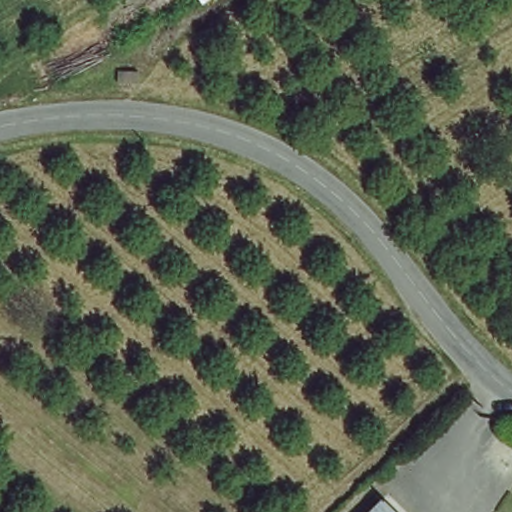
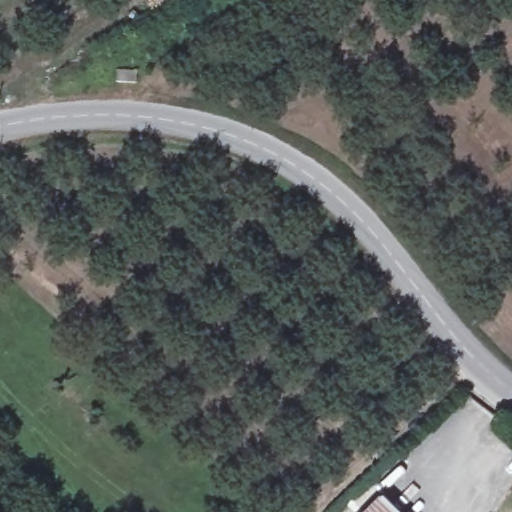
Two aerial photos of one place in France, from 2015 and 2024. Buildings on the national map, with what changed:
unchanged [(405,512),(371,512),(386,495),(405,512)]

